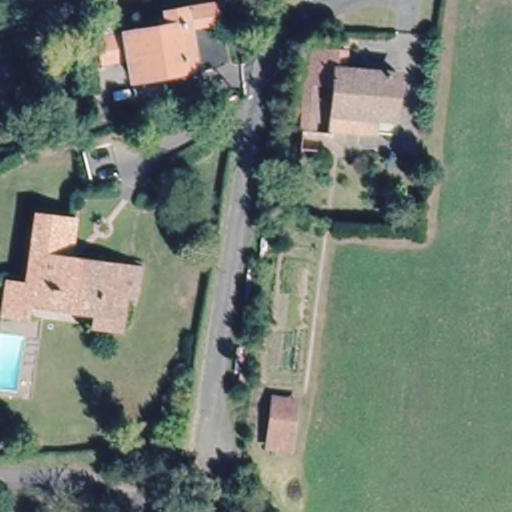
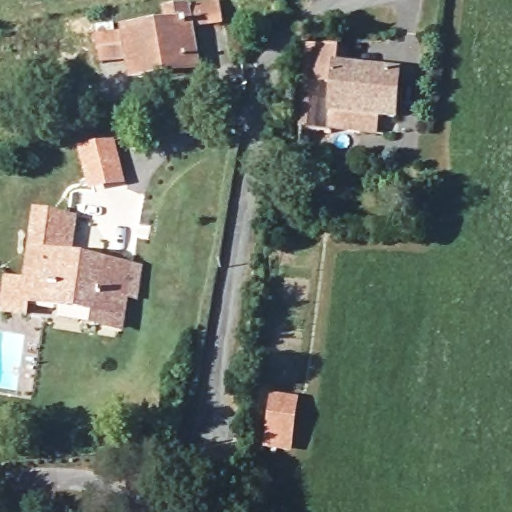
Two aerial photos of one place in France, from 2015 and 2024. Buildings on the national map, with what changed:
unchanged [(185,71),(132,79),(125,34),(167,27),(165,14),(187,10),(217,4),(220,19),(190,25),(196,59),(198,68),(185,71)]
unchanged [(325,127),(326,112),(330,82),(317,81),(313,126),(296,124),(301,79),(305,41),(325,42),(323,64),(396,71),(392,117),(377,116),(375,131),(325,127)]
new [(114,140),(125,183),(90,191),(76,149),(114,140)]
unchanged [(25,297),(23,306),(4,303),(7,276),(27,279),(36,210),(74,215),(69,254),(129,262),(122,310),(25,297)]
unchanged [(273,412),(297,416),(293,443),(285,442),(282,452),(268,451),(273,412)]

